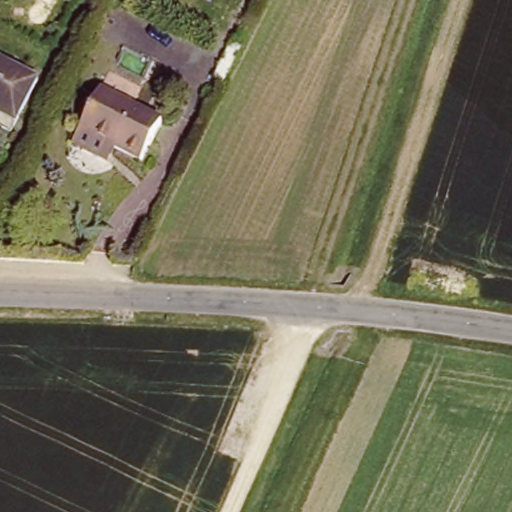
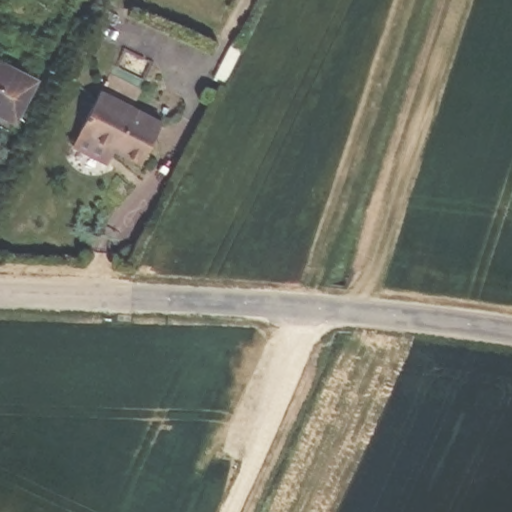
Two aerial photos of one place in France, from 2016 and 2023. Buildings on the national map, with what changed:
unchanged [(15,119),(0,111),(0,59),(36,77),(15,119)]
unchanged [(157,123),(135,164),(112,153),(104,168),(67,149),(97,91),(157,123)]

